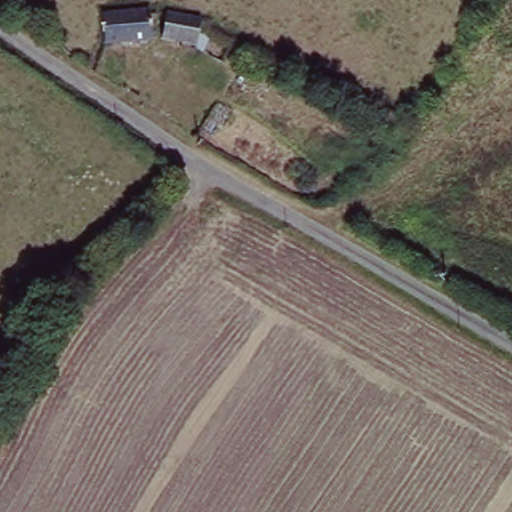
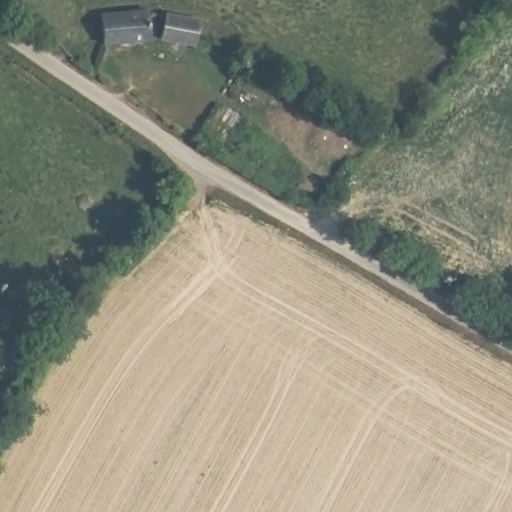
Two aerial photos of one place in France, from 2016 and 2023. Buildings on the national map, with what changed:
unchanged [(102,15),(152,11),(154,46),(106,49),(102,15)]
unchanged [(200,49),(163,43),(166,14),(203,21),(201,41),(200,49)]

